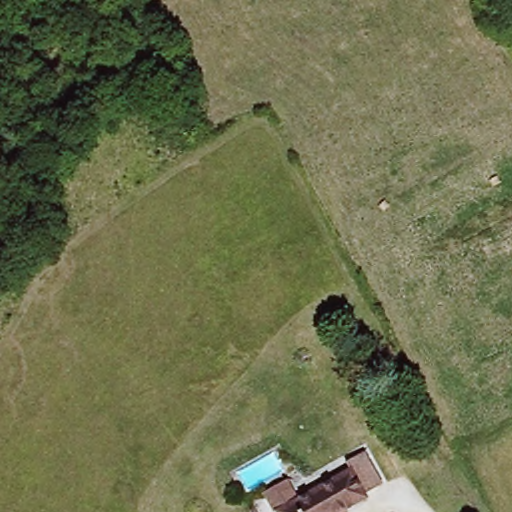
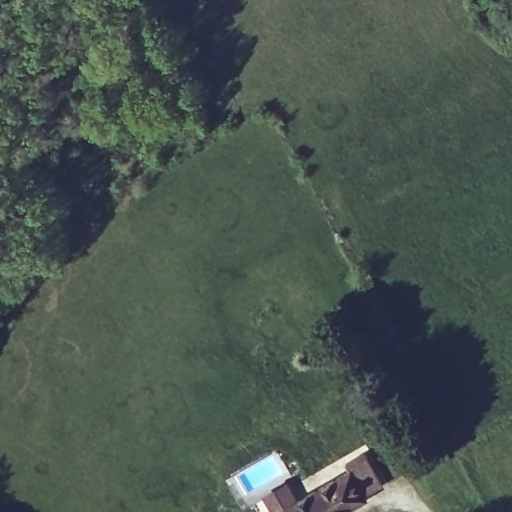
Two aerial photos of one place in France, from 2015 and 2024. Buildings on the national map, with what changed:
unchanged [(273,474),(292,502),(344,467),(340,457),(365,442),(385,475),(361,493),(365,500),(349,512),(270,512),(253,487),(273,474)]

